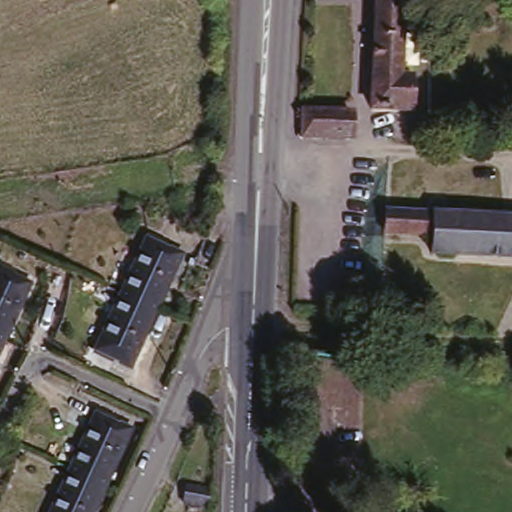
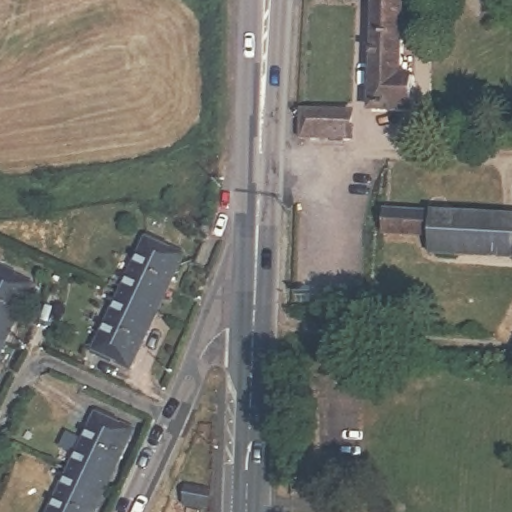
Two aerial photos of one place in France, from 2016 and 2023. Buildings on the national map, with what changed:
unchanged [(407,75),(407,111),(368,110),(371,0),(402,0),(399,75),(407,75)]
unchanged [(350,142),(331,141),(304,140),(305,112),(351,116),(350,142)]
unchanged [(431,238),(386,236),(387,210),(512,214),(512,261),(430,258),(431,238)]
unchanged [(124,300),(149,244),(183,259),(157,315),(124,300)]
unchanged [(0,341),(0,273),(33,289),(8,345),(0,341)]
unchanged [(132,372),(99,357),(124,300),(157,315),(132,372)]
unchanged [(0,364),(0,341),(8,345),(0,364)]
unchanged [(73,474),(98,418),(134,434),(108,490),(73,474)]
unchanged [(99,512),(56,512),(73,474),(108,490),(99,512)]
unchanged [(215,491),(214,509),(181,508),(182,489),(215,491)]

